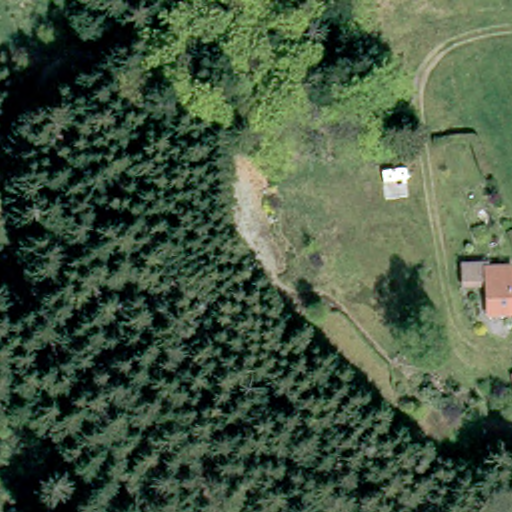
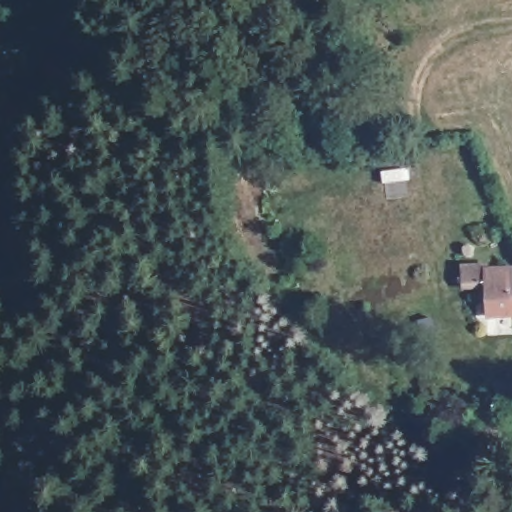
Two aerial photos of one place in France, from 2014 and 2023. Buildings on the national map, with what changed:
unchanged [(482,270),(509,276),(508,313),(483,312),(483,293),(459,289),(461,260),(483,263),(482,270)]

